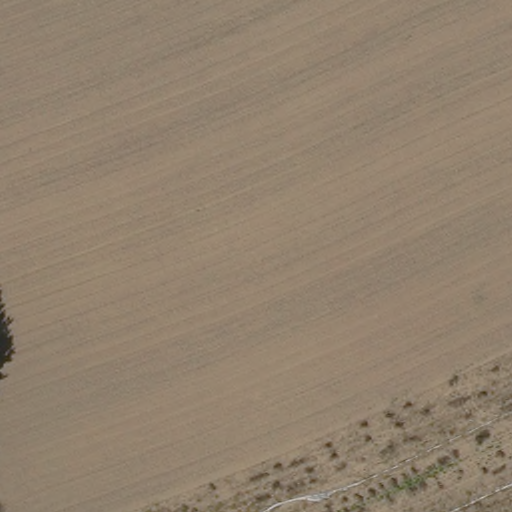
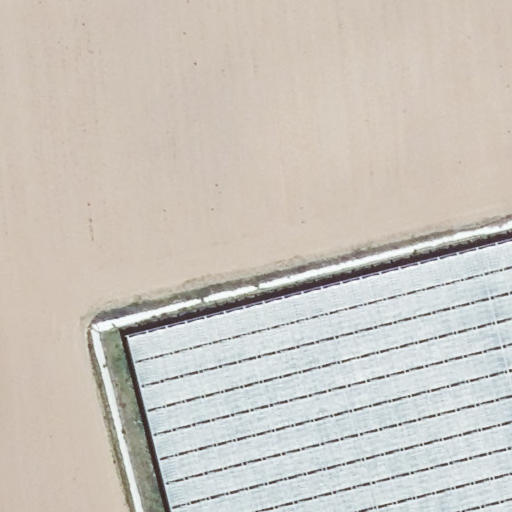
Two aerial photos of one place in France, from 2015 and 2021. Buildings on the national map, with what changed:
new [(512,242),(512,512),(173,512),(128,337),(512,242)]

